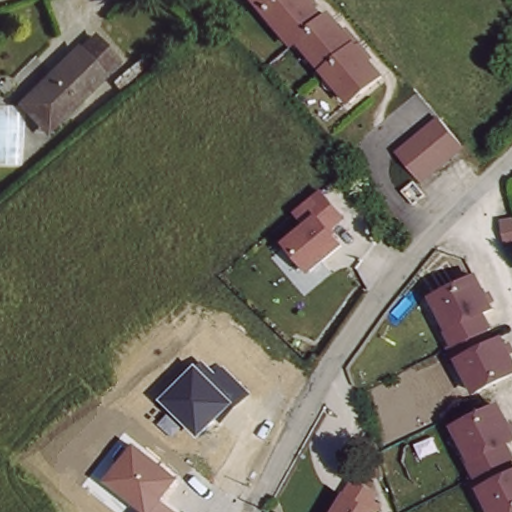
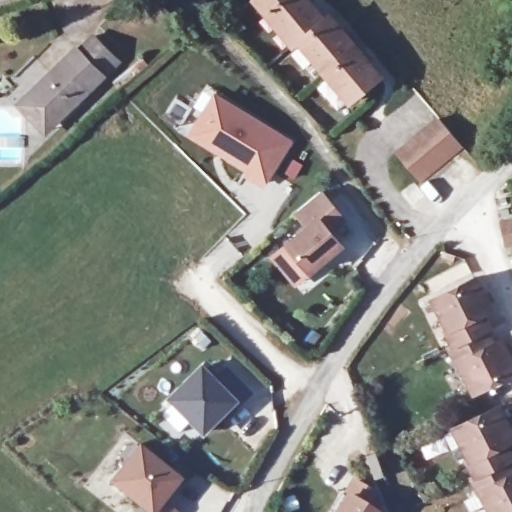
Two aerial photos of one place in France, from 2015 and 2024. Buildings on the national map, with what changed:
unchanged [(320,10),(323,7),(382,75),(349,105),(294,40),(291,43),(253,0),(312,0),(320,10)]
unchanged [(46,129),(22,101),(38,86),(79,47),(83,51),(99,38),(124,65),(68,119),(58,128),(51,134),(46,129)]
new [(289,141),(264,186),(186,137),(212,94),(289,141)]
unchanged [(462,140),(419,177),(392,145),(436,111),(462,140)]
unchanged [(345,220),(333,231),(346,246),(311,275),(285,244),(306,226),(295,213),(322,190),(345,220)]
unchanged [(492,304),(482,309),(489,325),(452,341),(432,290),(478,272),(492,304)]
unchanged [(512,372),(472,390),(454,353),(504,330),(512,349),(512,372)]
unchanged [(198,367),(206,362),(218,375),(225,368),(252,396),(224,422),(221,420),(201,438),(163,401),(198,367)]
unchanged [(512,429),(512,436),(509,437),(512,446),(512,457),(474,473),(452,420),(497,399),(512,429)]
unchanged [(164,500),(177,512),(143,512),(108,484),(137,448),(178,480),(164,500)]
unchanged [(512,508),(504,512),(490,512),(478,483),(512,466),(512,508)]
unchanged [(344,482),(350,470),(378,486),(370,500),(379,506),(375,512),(330,512),(346,483),(344,482)]

